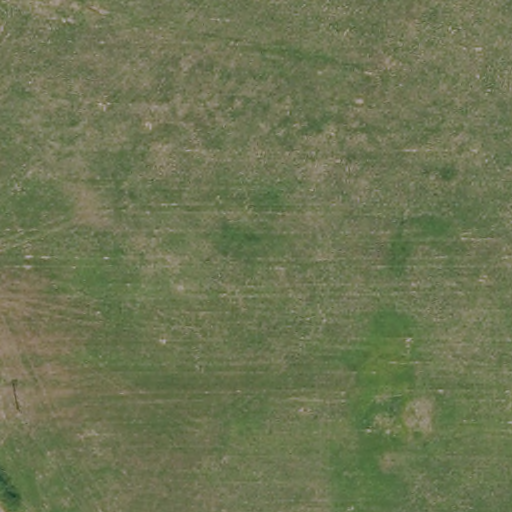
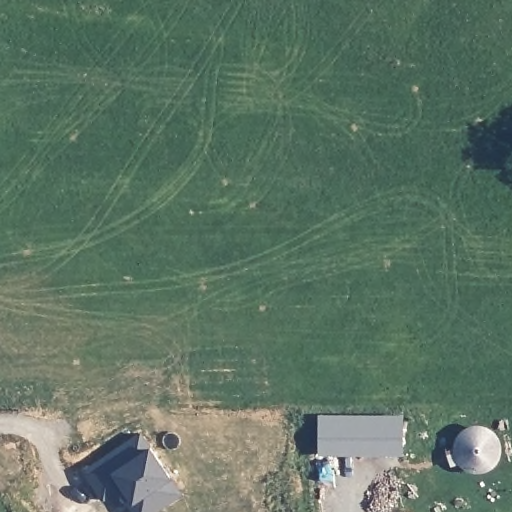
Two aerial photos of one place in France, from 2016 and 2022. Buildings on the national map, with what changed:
new [(319,417),(400,416),(400,451),(319,452),(319,417)]
new [(455,444),(456,439),(461,433),(467,429),(472,427),(478,427),(485,429),(490,432),(494,437),(496,444),(496,450),(495,456),(491,461),(487,465),(482,468),(476,469),(470,468),(464,465),(459,461),(455,452),(455,444)]
new [(140,434),(180,493),(152,512),(134,512),(129,504),(132,501),(123,486),(104,499),(85,472),(140,434)]

